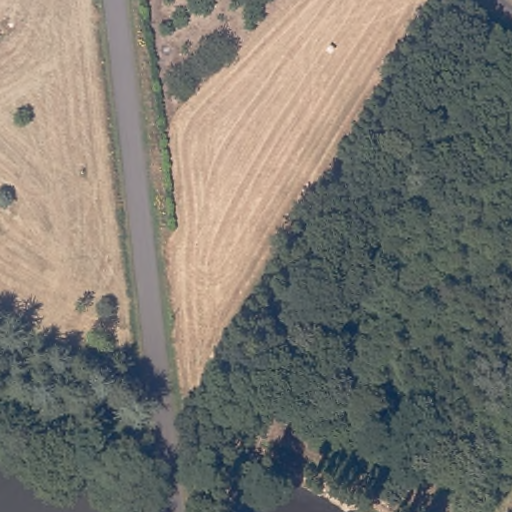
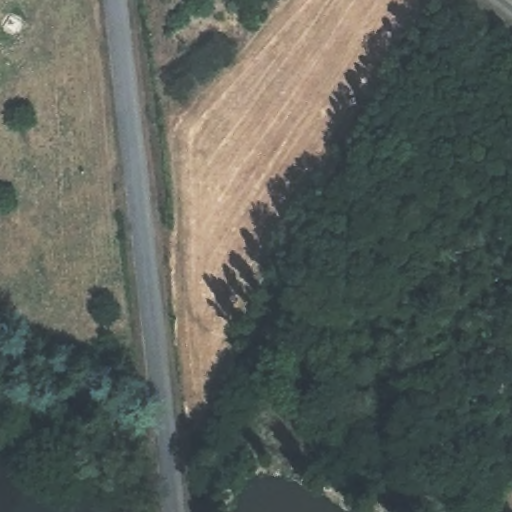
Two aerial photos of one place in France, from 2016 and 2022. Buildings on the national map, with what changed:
[]

